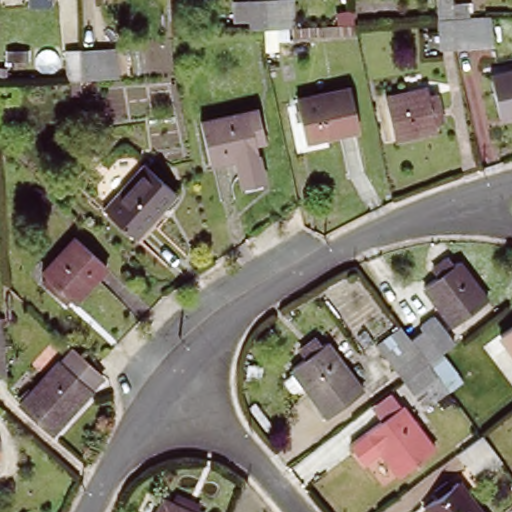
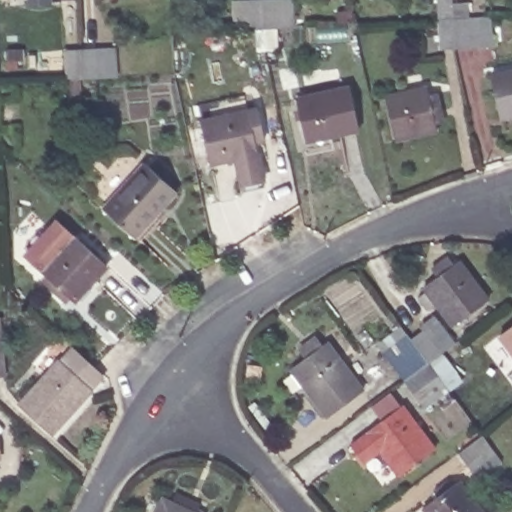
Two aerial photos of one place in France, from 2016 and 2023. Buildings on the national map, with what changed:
unchanged [(30,4),(30,0),(49,0),(50,3),(30,4)]
unchanged [(294,0),(296,27),(263,28),(247,29),(247,0),(294,0)]
unchanged [(455,48),(440,49),(438,19),(437,0),(452,0),(452,4),(467,3),(470,17),(491,16),(492,46),(455,48)]
unchanged [(70,50),(85,49),(115,47),(116,77),(86,78),(70,79),(70,50)]
unchanged [(512,110),(499,113),(490,71),(512,66),(512,110)]
unchanged [(355,88),(363,129),(310,140),(301,100),(355,88)]
unchanged [(433,94),(441,92),(448,122),(440,123),(442,130),(400,139),(390,97),(432,88),(433,94)]
unchanged [(262,109),(268,138),(260,141),(262,151),(213,162),(205,121),(262,109)]
unchanged [(180,187),(140,231),(107,203),(148,158),(180,187)]
unchanged [(111,264),(79,301),(73,297),(68,301),(48,282),(52,277),(47,272),(80,237),(111,264)]
unchanged [(486,300),(453,324),(423,286),(437,276),(431,268),(446,257),(451,265),(457,261),(486,300)]
unchanged [(2,313),(5,379),(0,379),(0,314),(2,313)]
unchanged [(422,408),(403,381),(383,353),(406,336),(408,338),(422,329),(419,325),(434,314),(455,342),(426,363),(447,390),(422,408)]
unchanged [(512,330),(512,345),(505,335),(512,330)]
unchanged [(367,389),(332,416),(315,393),(305,401),(295,389),(305,380),(296,368),(311,356),(305,348),(320,338),(325,346),(332,342),(367,389)]
unchanged [(91,389),(51,434),(18,405),(67,352),(72,346),(95,366),(103,373),(98,379),(90,388),(91,389)]
unchanged [(346,441),(361,427),(404,400),(438,445),(400,474),(381,452),(364,466),(346,441)]
unchanged [(501,461),(479,479),(457,452),(481,434),(501,461)]
unchanged [(481,512),(427,512),(423,507),(437,496),(434,491),(447,481),(450,486),(458,480),(481,512)]
unchanged [(171,502),(175,494),(198,505),(196,512),(157,512),(163,498),(171,502)]

